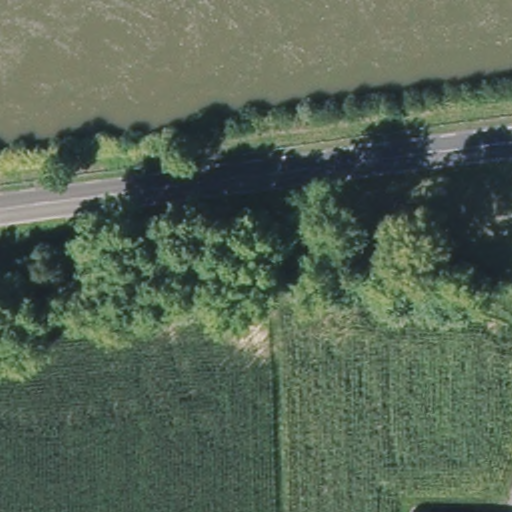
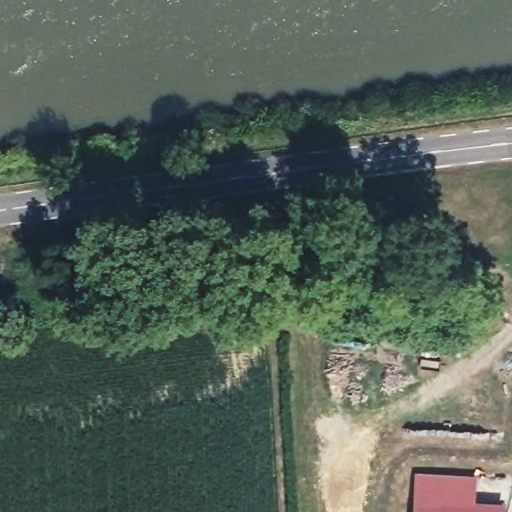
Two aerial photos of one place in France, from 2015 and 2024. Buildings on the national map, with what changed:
new [(416,472),(477,476),(476,501),(504,502),(504,512),(415,512),(416,472)]

